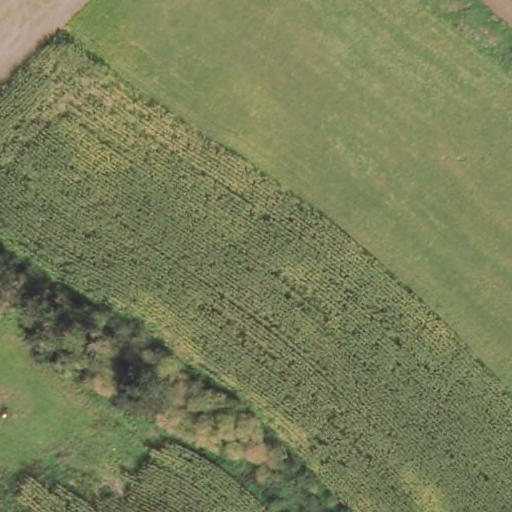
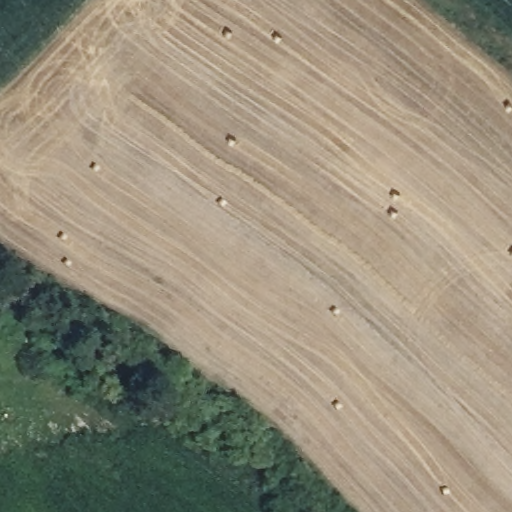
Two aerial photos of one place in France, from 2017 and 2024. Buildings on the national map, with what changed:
[]

